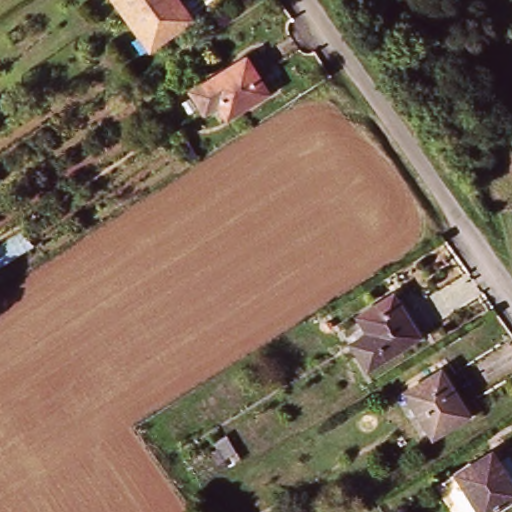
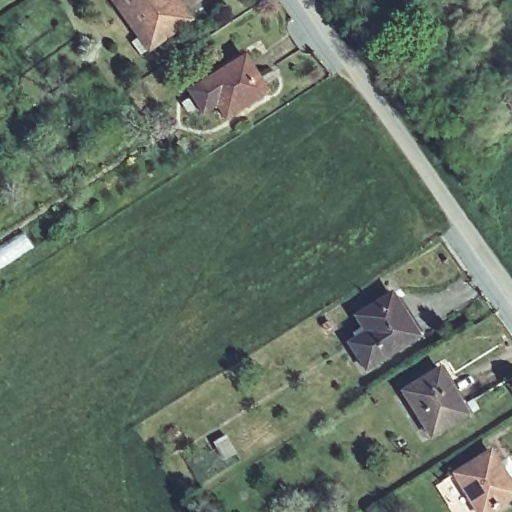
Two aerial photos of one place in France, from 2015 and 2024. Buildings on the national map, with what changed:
unchanged [(147,51),(114,0),(173,0),(189,24),(147,51)]
unchanged [(243,58),(267,94),(228,119),(218,105),(204,113),(191,91),(243,58)]
unchanged [(353,347),(362,340),(370,335),(359,317),(394,295),(421,338),(377,365),(367,371),(353,347)]
unchanged [(442,370),(470,414),(435,436),(407,394),(442,370)]
unchanged [(496,453),(512,478),(512,499),(492,512),(484,512),(459,476),(496,453)]

